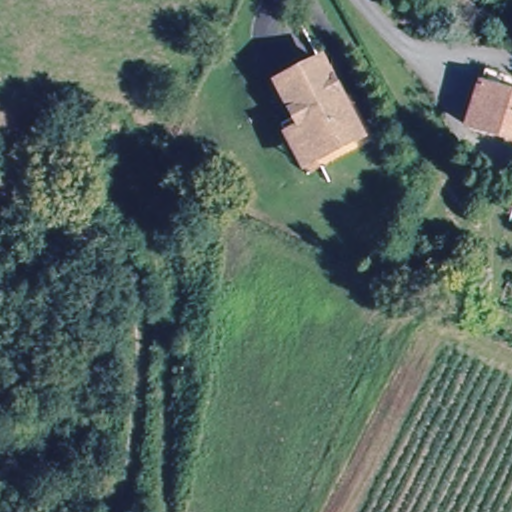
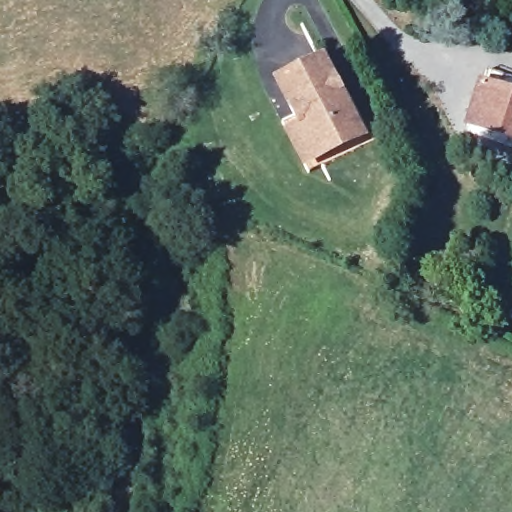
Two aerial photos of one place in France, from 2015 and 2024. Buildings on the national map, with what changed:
unchanged [(281,123),(295,114),(278,86),(322,61),(362,131),(320,155),(305,164),(281,123)]
unchanged [(480,84),(512,96),(512,139),(467,122),(480,84)]

